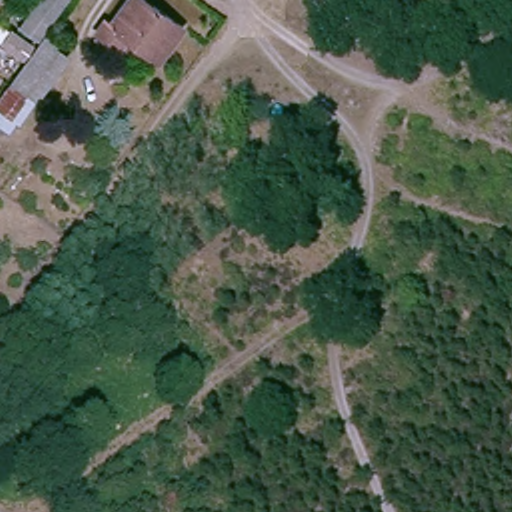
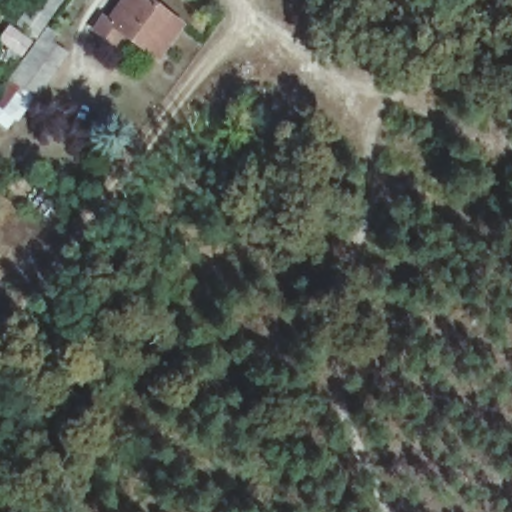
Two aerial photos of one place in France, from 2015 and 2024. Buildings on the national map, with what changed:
unchanged [(30,0),(59,0),(49,15),(30,0)]
unchanged [(127,36),(118,49),(96,30),(104,20),(108,24),(122,5),(126,0),(150,0),(185,26),(183,29),(173,41),(159,61),(127,36)]
unchanged [(67,47),(39,87),(20,71),(48,32),(67,47)]

